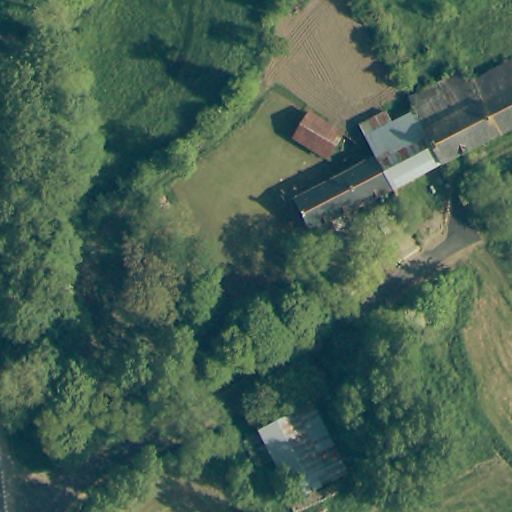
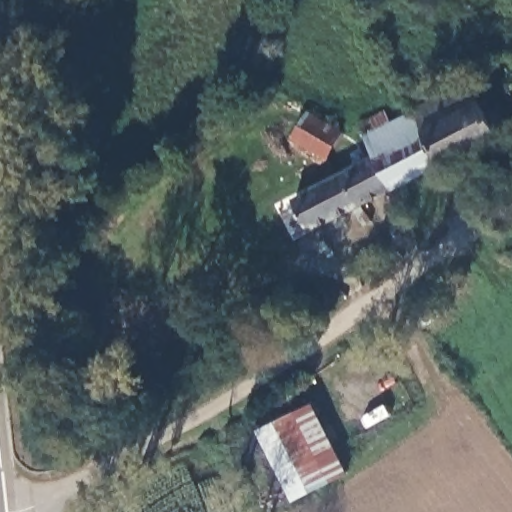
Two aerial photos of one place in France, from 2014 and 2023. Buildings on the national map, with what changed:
unchanged [(512,61),(512,87),(483,102),(472,83),(512,61)]
unchanged [(420,111),(412,96),(443,79),(457,72),(463,68),(472,83),(483,102),(512,87),(512,128),(481,144),(452,94),(420,111)]
unchanged [(420,111),(452,94),(481,144),(441,165),(413,114),(420,111)]
unchanged [(311,111),(333,129),(342,136),(326,156),(295,132),(311,111)]
unchanged [(387,113),(394,124),(413,114),(441,165),(392,191),(377,158),(362,126),(387,113)]
unchanged [(377,158),(392,191),(308,235),(292,203),(370,162),(377,158)]
unchanged [(351,472),(296,500),(257,429),(312,399),(351,472)]

